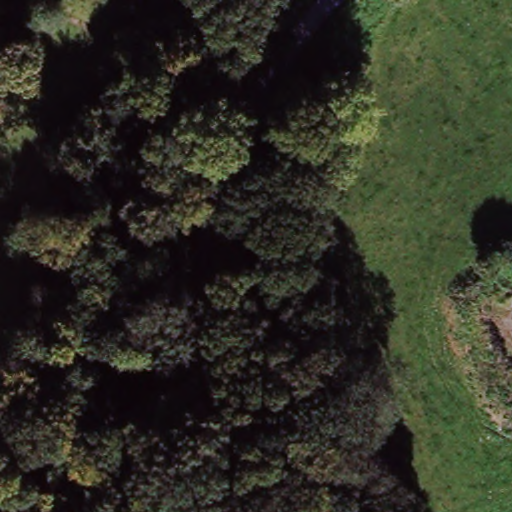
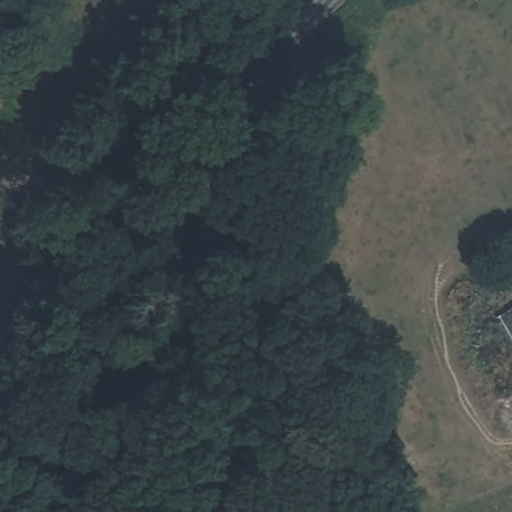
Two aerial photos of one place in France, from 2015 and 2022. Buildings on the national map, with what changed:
[]

